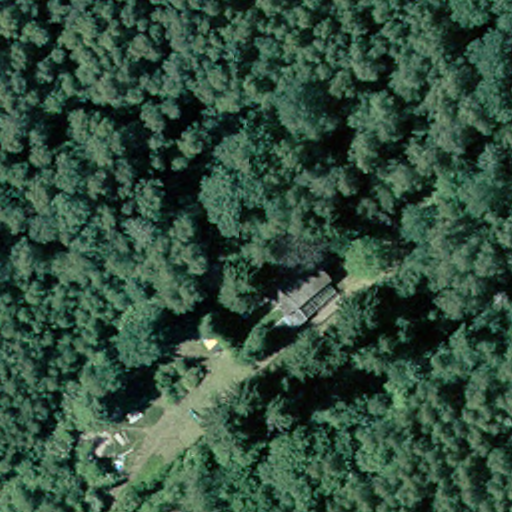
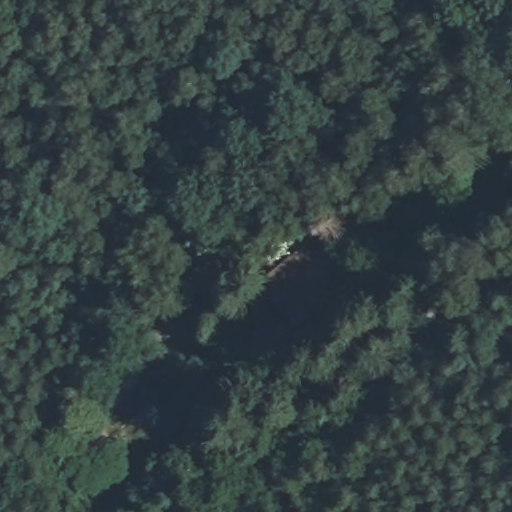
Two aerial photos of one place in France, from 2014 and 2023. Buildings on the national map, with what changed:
unchanged [(265,284),(292,255),(344,295),(310,325),(265,284)]

